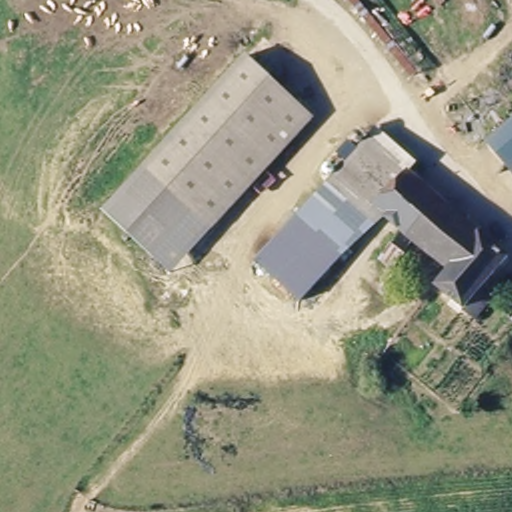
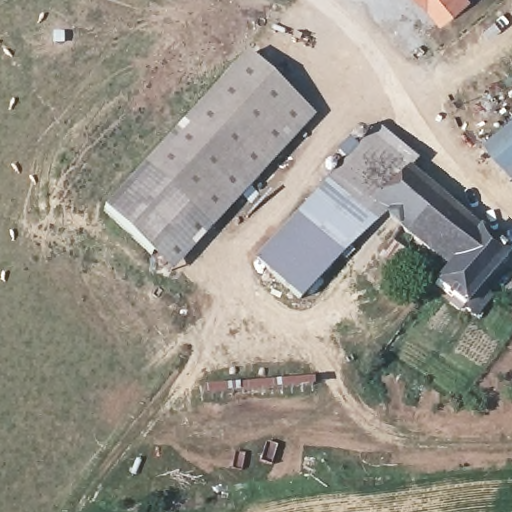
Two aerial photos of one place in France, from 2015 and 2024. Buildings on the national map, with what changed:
new [(442,25),(421,0),(469,0),(442,25)]
unchanged [(251,57),(315,116),(210,235),(189,217),(141,172),(251,57)]
unchanged [(493,150),(512,123),(512,164),(493,150)]
unchanged [(377,210),(387,218),(347,257),(293,215),(372,135),(412,172),(377,210)]
unchanged [(189,217),(151,258),(99,216),(141,172),(189,217)]
unchanged [(510,260),(467,312),(435,287),(452,268),(387,218),(377,210),(412,172),(510,260)]
unchanged [(347,257),(303,302),(254,255),(293,215),(347,257)]

